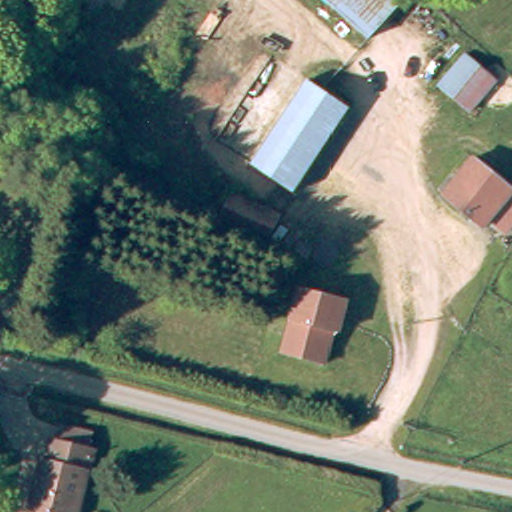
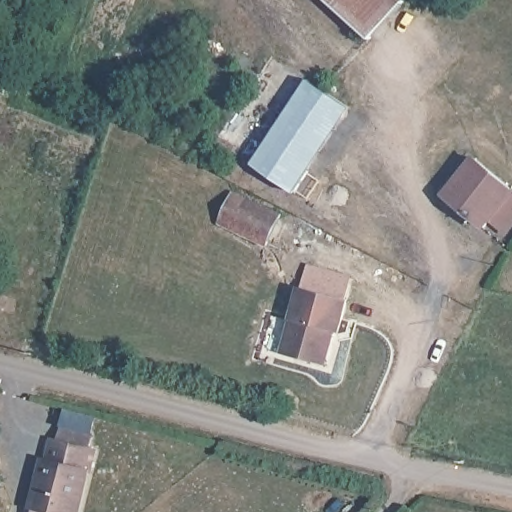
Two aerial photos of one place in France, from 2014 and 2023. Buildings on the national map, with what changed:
unchanged [(332,0),(407,0),(375,37),(332,0)]
demolished [(478,107),(445,83),(463,57),(497,81),(478,107)]
unchanged [(308,78),(350,107),(292,189),(251,161),(308,78)]
unchanged [(449,195),(477,161),(512,191),(512,203),(490,229),(449,195)]
unchanged [(207,209),(220,182),(300,219),(286,248),(207,209)]
unchanged [(343,298),(335,330),(330,329),(322,363),(280,353),(297,286),(343,298)]
unchanged [(41,506),(38,506),(40,482),(49,483),(57,439),(65,441),(67,428),(75,424),(98,429),(97,446),(102,447),(97,473),(94,472),(84,512),(40,512),(41,506)]

